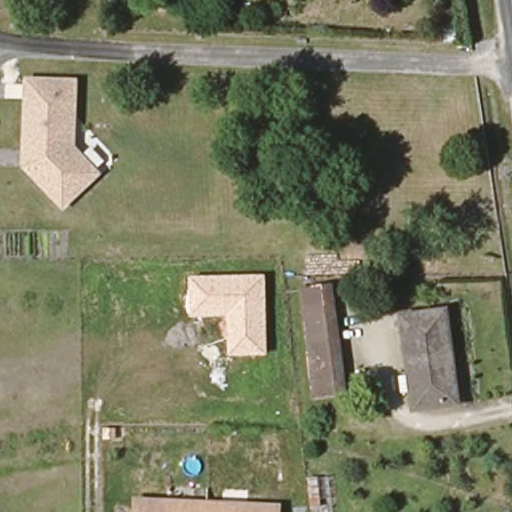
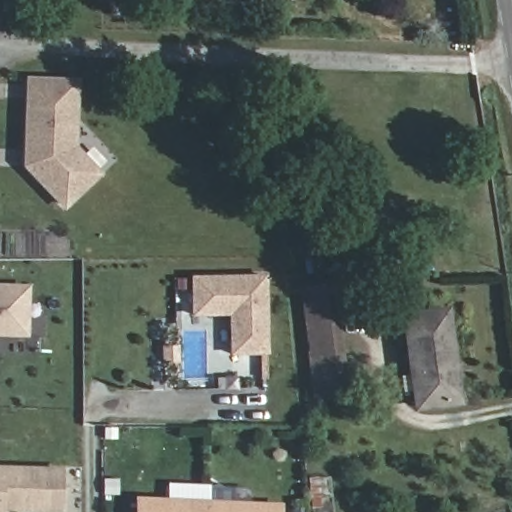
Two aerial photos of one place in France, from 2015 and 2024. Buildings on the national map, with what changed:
unchanged [(70,151),(94,178),(60,209),(24,169),(27,87),(72,89),(70,151)]
unchanged [(229,356),(228,315),(190,318),(190,276),(265,273),(267,354),(229,356)]
new [(0,336),(0,284),(29,285),(26,337),(0,336)]
unchanged [(306,317),(303,302),(327,298),(330,313),(343,399),(319,402),(306,317)]
unchanged [(458,403),(416,409),(415,394),(395,396),(393,379),(412,377),(405,318),(446,313),(458,403)]
new [(61,512),(49,512),(1,510),(1,512),(0,512),(0,465),(62,467),(61,512)]
unchanged [(278,512),(137,512),(137,499),(278,504),(278,512)]

